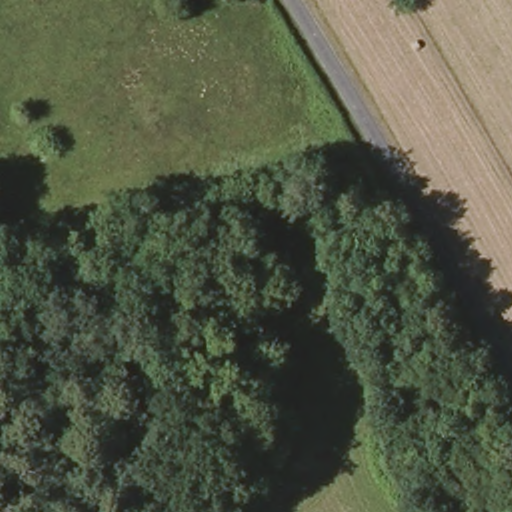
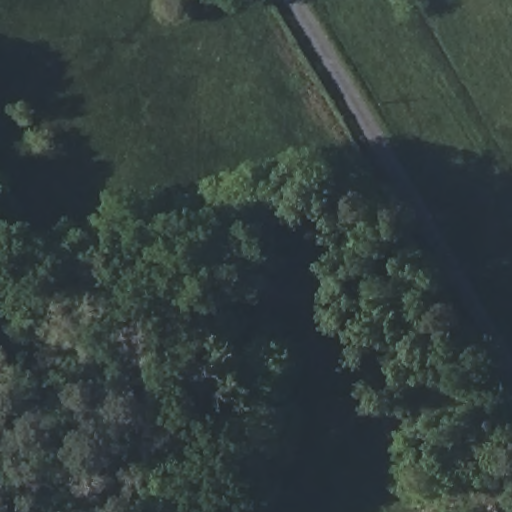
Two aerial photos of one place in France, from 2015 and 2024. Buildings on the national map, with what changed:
[]

